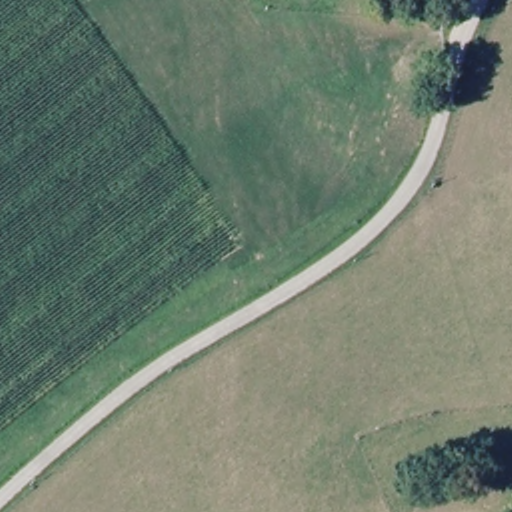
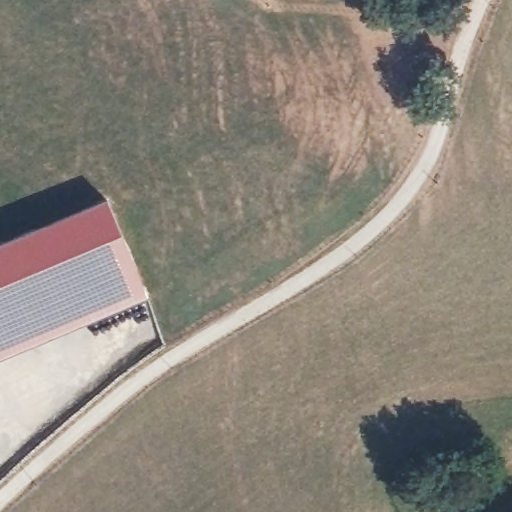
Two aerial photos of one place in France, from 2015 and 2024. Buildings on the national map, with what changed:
new [(0,359),(0,242),(106,198),(147,296),(0,359)]

